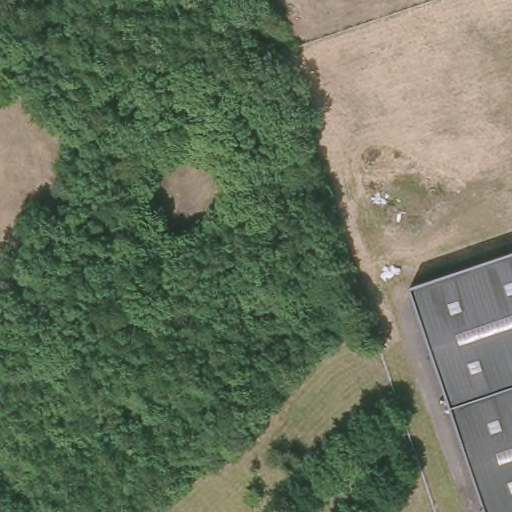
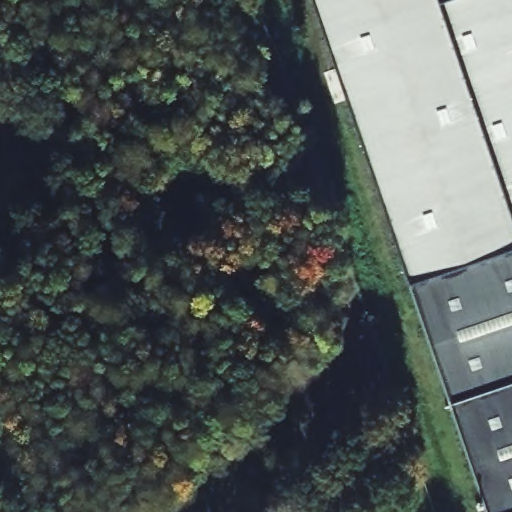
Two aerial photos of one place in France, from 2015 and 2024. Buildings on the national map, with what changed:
new [(512,251),(406,288),(314,0),(512,0),(512,251)]
unchanged [(406,288),(512,251),(512,512),(486,512),(485,510),(406,288)]

